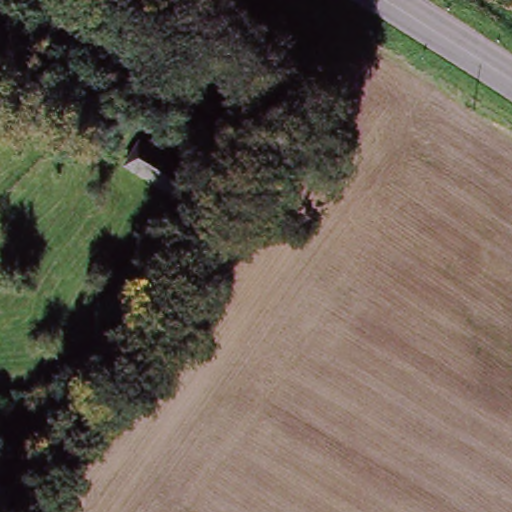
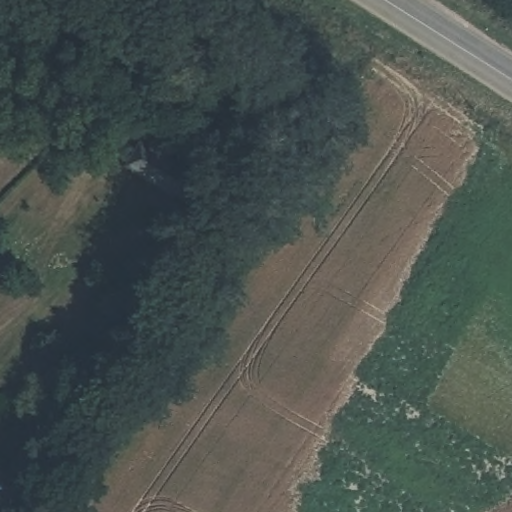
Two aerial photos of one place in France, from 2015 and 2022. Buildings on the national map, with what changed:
unchanged [(177,202),(162,193),(125,169),(138,146),(178,170),(192,179),(177,202)]
unchanged [(0,512),(0,467),(25,485),(6,512),(0,512)]

